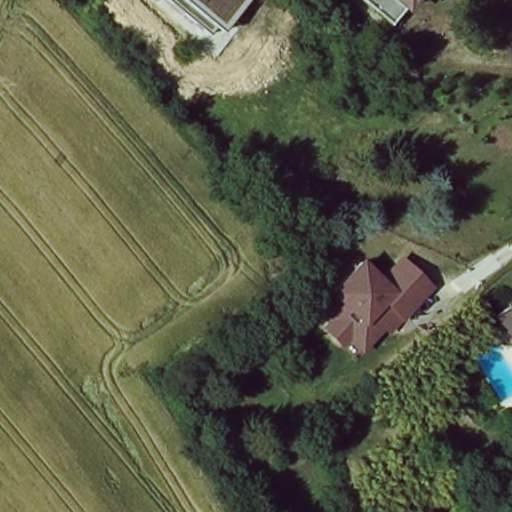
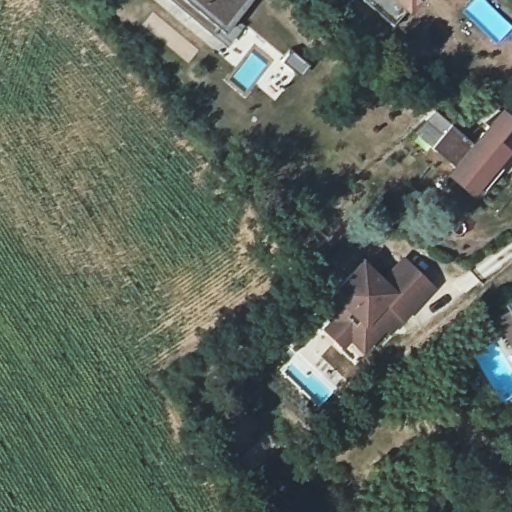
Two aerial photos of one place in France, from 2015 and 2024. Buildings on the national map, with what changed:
unchanged [(223,32),(216,28),(209,35),(168,0),(247,0),(223,32)]
unchanged [(402,24),(376,0),(423,0),(402,24)]
new [(446,132),(469,152),(484,136),(479,131),(494,118),(512,132),(512,145),(504,154),(501,150),(486,167),(496,177),(477,200),(425,155),(446,132)]
unchanged [(381,278),(403,253),(436,287),(372,351),(355,337),(344,347),(323,327),(327,320),(318,310),(359,258),(381,278)]
unchanged [(504,308),(512,304),(512,321),(504,308)]
unchanged [(512,503),(512,512),(504,512),(508,502),(512,503)]

